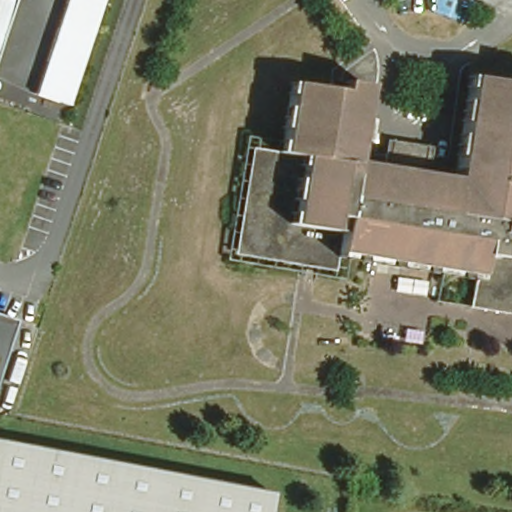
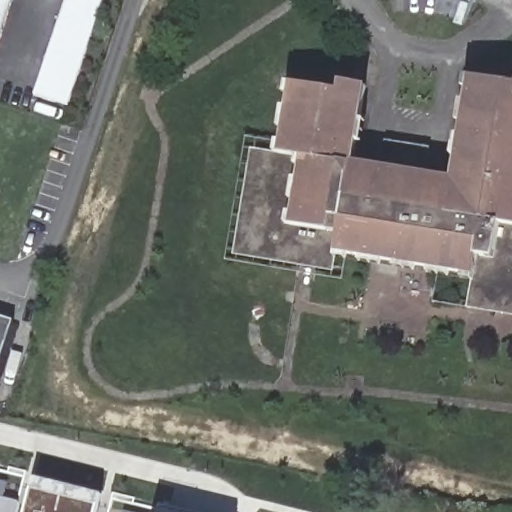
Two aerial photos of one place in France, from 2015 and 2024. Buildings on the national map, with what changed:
unchanged [(0,49),(0,0),(16,0),(0,49)]
unchanged [(67,100),(34,89),(64,0),(100,0),(67,100)]
unchanged [(370,252),(336,247),(332,270),(232,253),(251,147),(277,152),(291,82),(332,90),(334,81),(341,82),(366,86),(354,160),(388,166),(390,158),(384,157),(388,138),(431,145),(428,164),(425,164),(423,173),(451,177),(470,77),(512,84),(512,315),(431,300),(438,264),(370,252)]
unchanged [(17,331),(0,385),(0,325),(17,331)]
demolished [(275,512),(0,512),(0,450),(277,502),(275,512)]
new [(16,512),(0,512),(0,473),(25,479),(16,512)]
new [(32,512),(41,477),(108,494),(104,512),(32,512)]

